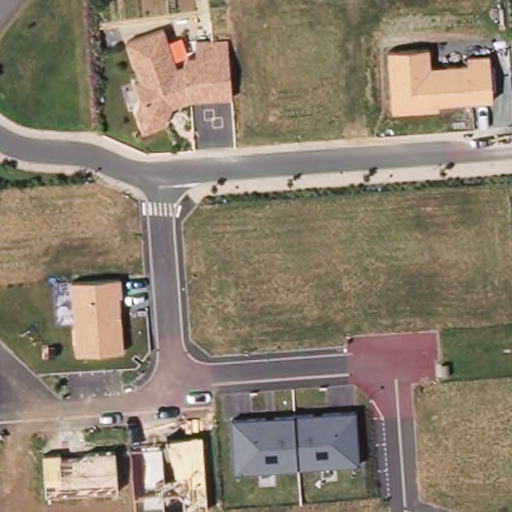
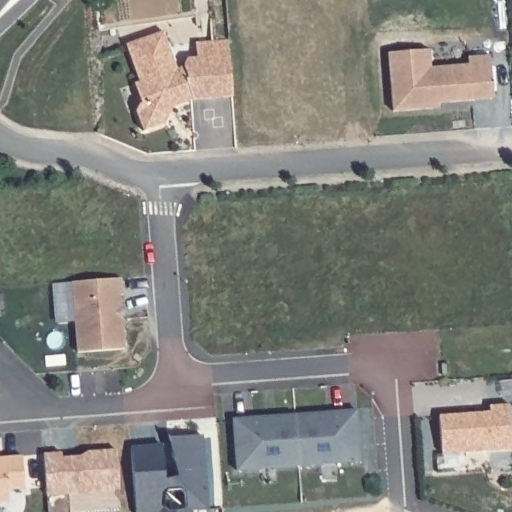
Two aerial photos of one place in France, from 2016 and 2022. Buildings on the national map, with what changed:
unchanged [(192,94),(171,99),(163,101),(166,110),(161,118),(140,124),(134,103),(138,95),(141,95),(135,75),(141,74),(140,72),(130,34),(168,24),(178,63),(184,63),(189,54),(198,54),(197,39),(230,36),(231,51),(232,70),(233,93),(192,94)]
unchanged [(391,111),(387,54),(429,50),(429,68),(467,63),(467,56),(489,54),(492,100),(437,104),(437,109),(391,111)]
unchanged [(69,282),(118,279),(122,351),(75,354),(69,282)]
new [(487,412),(487,406),(506,404),(510,449),(439,454),(436,416),(487,412)]
unchanged [(355,462),(235,471),(232,419),(354,411),(355,462)]
unchanged [(131,451),(171,448),(170,436),(201,436),(207,512),(201,512),(136,512),(131,451)]
unchanged [(44,453),(114,450),(117,491),(47,495),(44,453)]
new [(0,458),(21,457),(24,490),(6,492),(8,504),(0,504),(0,458)]

